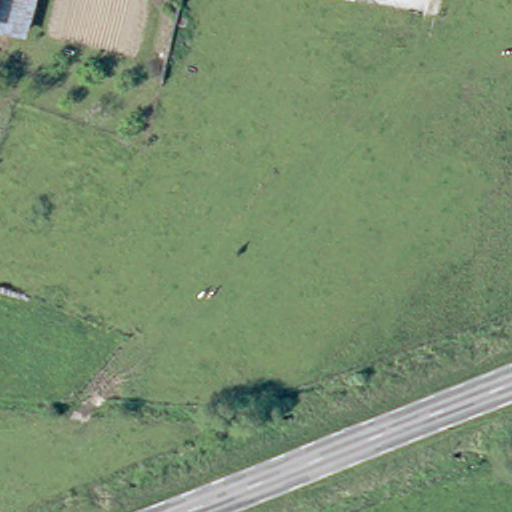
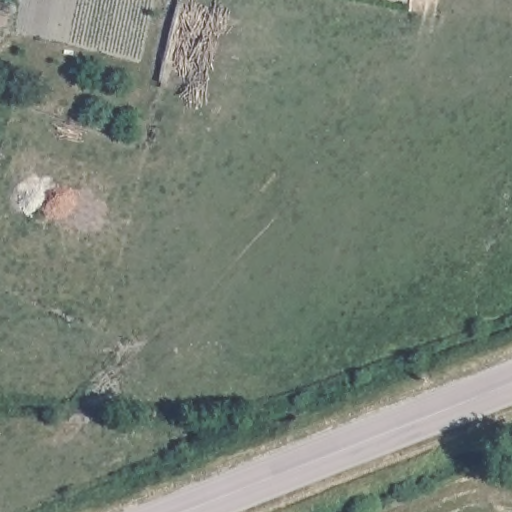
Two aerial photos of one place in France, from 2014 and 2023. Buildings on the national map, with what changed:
unchanged [(25,0),(17,36),(0,32),(0,0),(25,0)]

